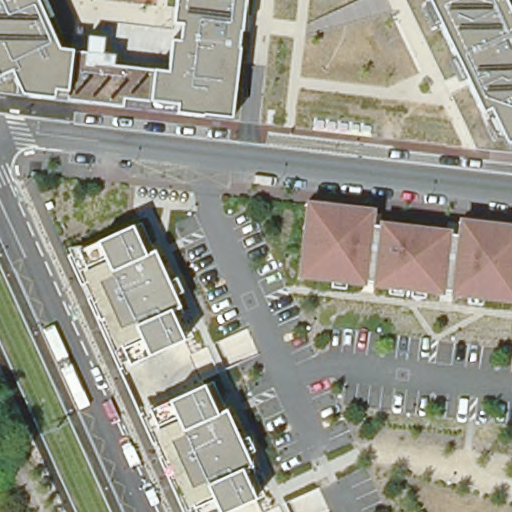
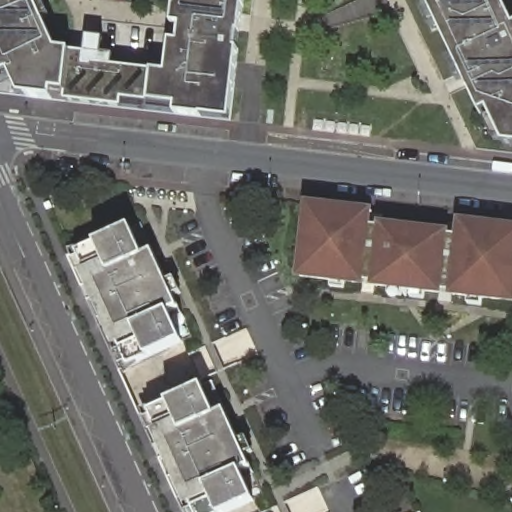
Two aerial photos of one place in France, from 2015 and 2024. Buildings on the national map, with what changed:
unchanged [(72,51),(67,102),(21,97),(11,73),(0,77),(0,0),(36,0),(58,49),(72,51)]
unchanged [(153,70),(168,72),(171,41),(179,42),(181,25),(172,24),(175,0),(246,0),(232,120),(149,111),(153,70)]
unchanged [(428,0),(503,0),(512,19),(512,146),(496,144),(427,0),(428,0)]
unchanged [(67,102),(72,51),(115,55),(113,66),(153,70),(149,111),(67,102)]
unchanged [(373,209),(371,227),(378,228),(379,223),(450,229),(450,234),(458,235),(460,219),(512,224),(512,304),(451,298),(451,292),(442,291),(441,297),(371,289),(371,283),(365,282),(365,288),(296,279),(305,202),(373,209)]
unchanged [(189,341),(115,372),(61,255),(135,224),(189,341)]
unchanged [(260,501),(232,512),(175,512),(131,414),(209,382),(260,501)]

